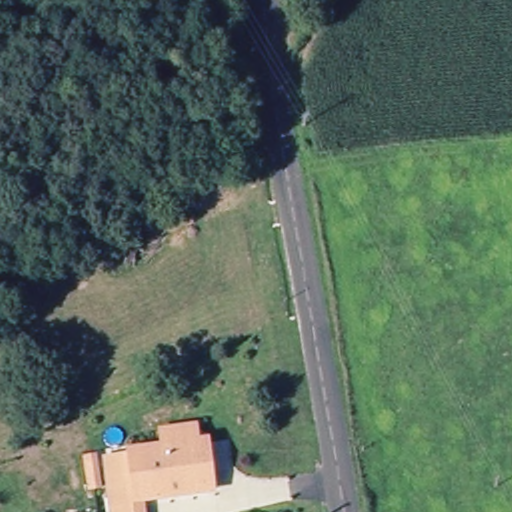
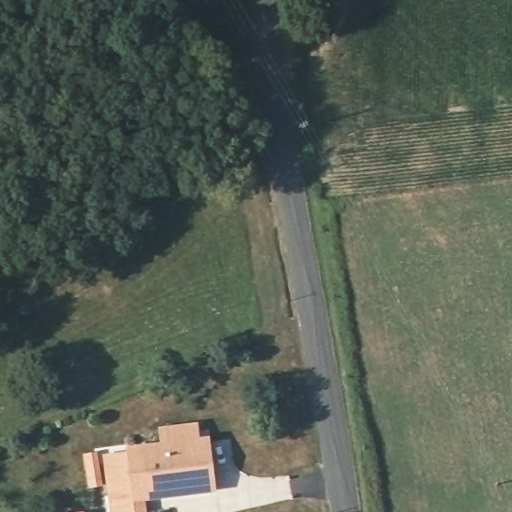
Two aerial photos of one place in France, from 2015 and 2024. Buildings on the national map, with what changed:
unchanged [(106,511),(99,466),(123,462),(122,456),(156,451),(155,435),(187,430),(190,445),(199,444),(205,493),(137,506),(139,512),(106,512),(106,511)]

